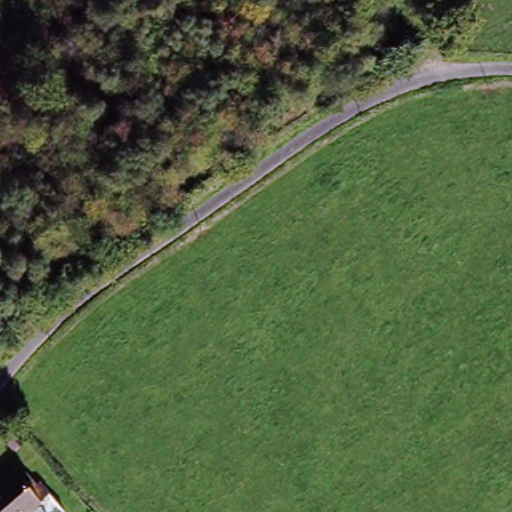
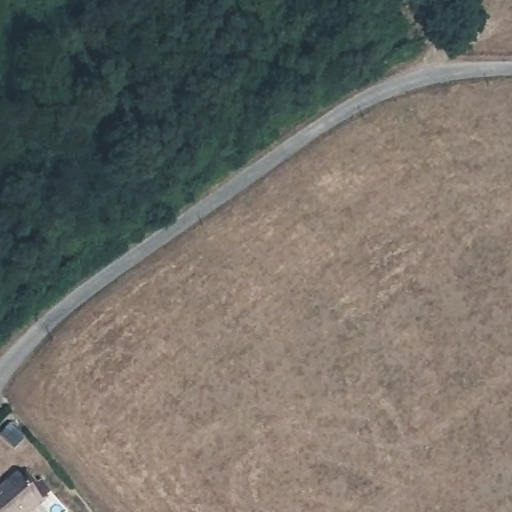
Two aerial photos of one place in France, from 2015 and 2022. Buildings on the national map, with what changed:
unchanged [(50,512),(0,512),(0,476),(14,465),(50,512)]

